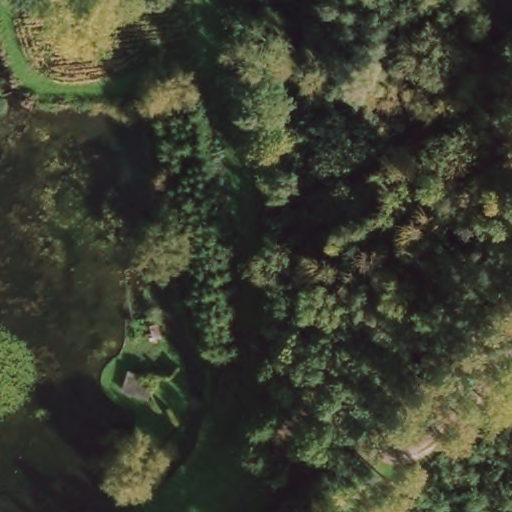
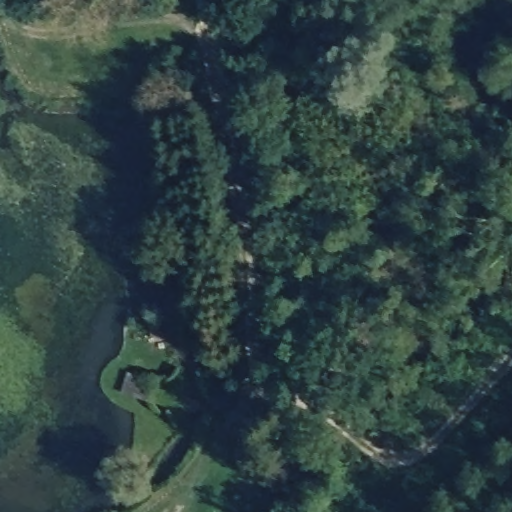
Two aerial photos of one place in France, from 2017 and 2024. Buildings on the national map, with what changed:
unchanged [(161,377),(154,400),(125,390),(131,368),(161,377)]

